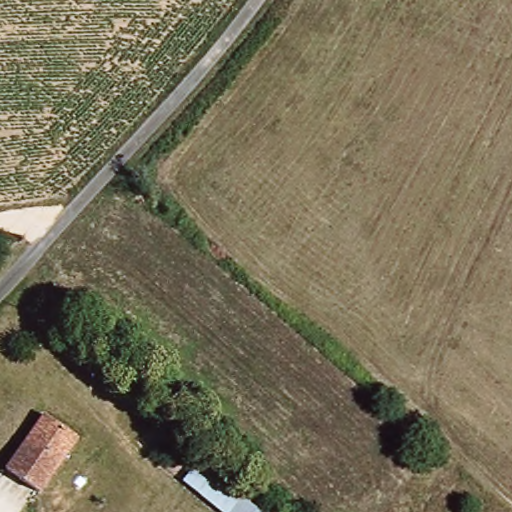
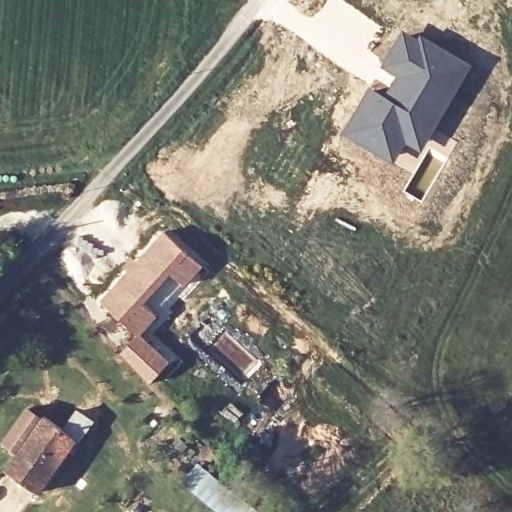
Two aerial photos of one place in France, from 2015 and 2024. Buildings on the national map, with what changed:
new [(371,84),(383,91),(393,76),(380,67),(402,28),(416,35),(418,32),(473,64),(420,154),(406,145),(395,165),(340,135),(371,84)]
new [(132,261),(163,230),(202,265),(183,286),(171,275),(145,302),(158,316),(142,333),(140,335),(135,335),(97,301),(132,261)]
new [(135,335),(140,335),(142,333),(172,360),(150,383),(118,352),(135,335)]
unchanged [(7,470),(49,418),(80,443),(39,495),(7,470)]

